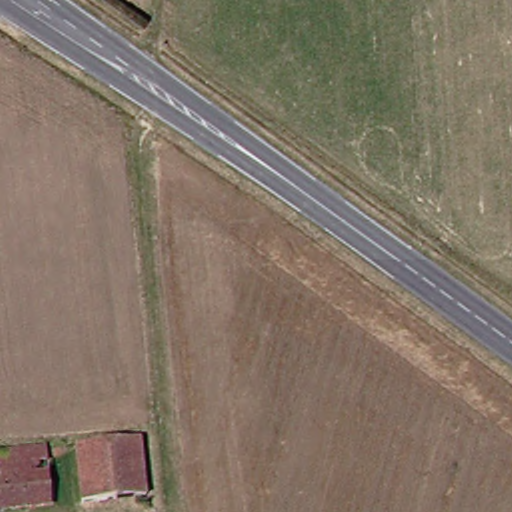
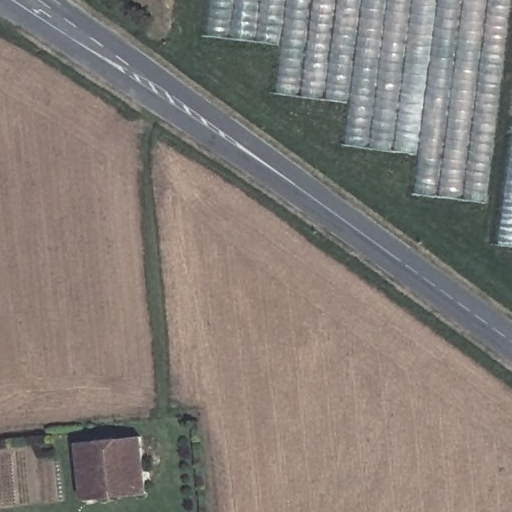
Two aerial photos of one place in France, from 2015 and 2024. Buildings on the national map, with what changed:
new [(417,193),(421,153),(347,143),(352,102),(277,92),(283,44),(207,35),(211,0),(512,0),(512,10),(488,201),(417,193)]
new [(512,146),(512,246),(498,244),(512,146)]
unchanged [(148,492),(84,499),(78,445),(142,438),(148,492)]
demolished [(4,470),(26,469),(30,504),(0,508),(0,453),(2,453),(4,470)]

